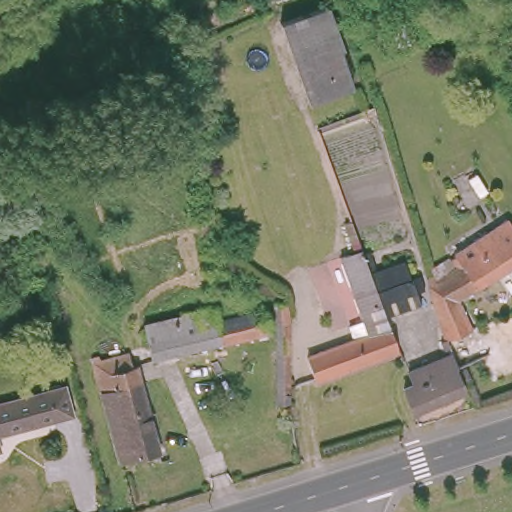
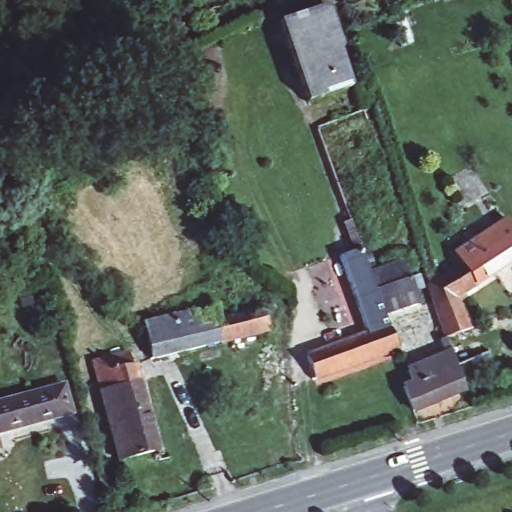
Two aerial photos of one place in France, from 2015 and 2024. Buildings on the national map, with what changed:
unchanged [(279,18),(326,1),(341,45),(338,46),(350,83),(305,98),(279,18)]
unchanged [(442,332),(439,324),(424,273),(424,272),(430,269),(432,274),(433,276),(462,257),(459,253),(454,246),(492,222),(493,223),(502,235),(512,228),(512,255),(456,293),(468,324),(456,329),(467,355),(453,361),(448,348),(444,340),(439,343),(436,334),(442,332)]
unchanged [(396,349),(307,381),(299,353),(349,337),(341,322),(353,314),(336,253),(360,243),(378,287),(413,279),(419,299),(386,313),(396,349)]
unchanged [(289,403),(274,403),(270,303),(284,302),(289,403)]
unchanged [(213,311),(218,310),(220,318),(261,308),(267,330),(149,359),(141,322),(188,311),(211,305),(213,311)]
unchanged [(100,353),(129,347),(131,359),(137,358),(161,446),(121,456),(93,350),(99,349),(100,353)]
unchanged [(448,348),(453,361),(452,362),(460,384),(409,404),(401,386),(399,382),(409,378),(404,365),(448,348)]
unchanged [(63,410),(0,427),(0,400),(55,385),(63,410)]

